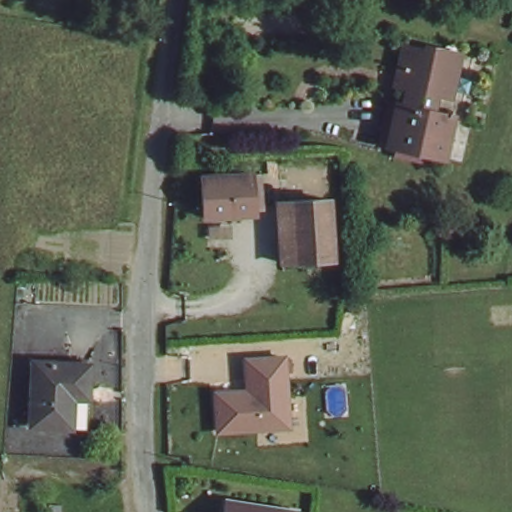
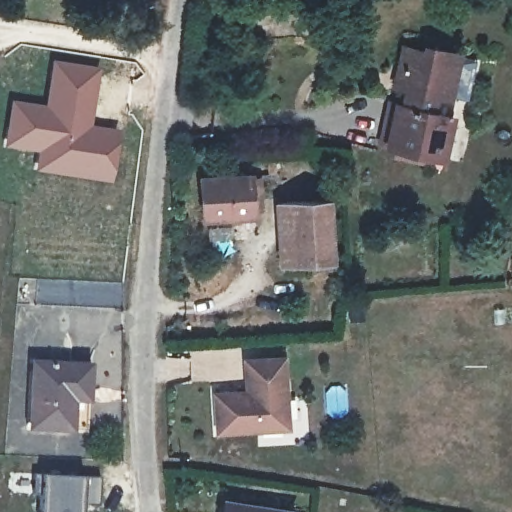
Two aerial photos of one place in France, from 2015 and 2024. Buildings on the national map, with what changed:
unchanged [(368,25),(346,25),(347,4),(367,4),(368,25)]
unchanged [(401,155),(402,145),(386,142),(394,101),(406,103),(409,85),(405,84),(397,82),(398,75),(404,45),(429,50),(430,46),(461,52),(453,94),(441,92),(437,111),(455,115),(449,154),(435,152),(434,161),(401,155)]
new [(35,170),(36,151),(4,147),(10,97),(45,104),(52,59),(98,67),(91,123),(119,129),(111,182),(35,170)]
unchanged [(249,216),(199,217),(197,180),(247,179),(249,216)]
unchanged [(276,205),(289,205),(326,203),(328,264),(291,265),(278,265),(276,205)]
unchanged [(291,430),(215,435),(212,389),(246,387),(244,355),(288,353),(291,430)]
unchanged [(32,356),(87,364),(78,430),(24,423),(32,356)]
new [(80,512),(37,512),(41,461),(84,463),(80,512)]
unchanged [(252,512),(227,512),(228,508),(252,512)]

